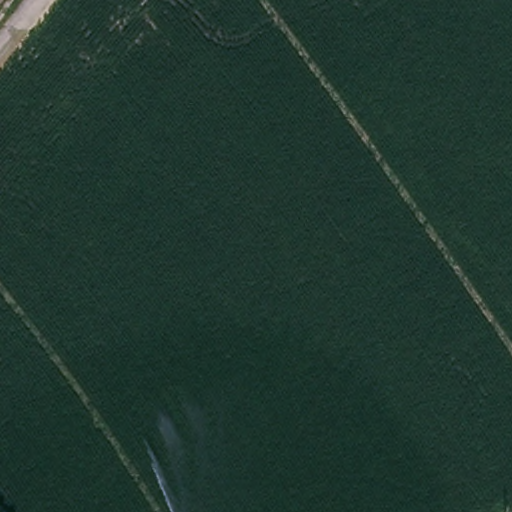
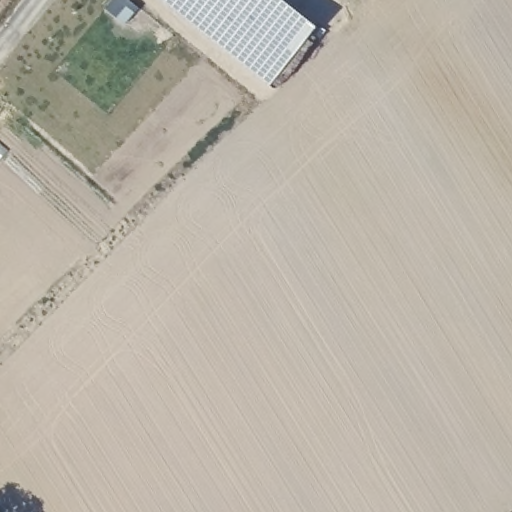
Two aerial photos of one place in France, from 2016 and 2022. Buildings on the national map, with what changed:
new [(270,83),(165,0),(282,0),(315,26),(270,83)]

